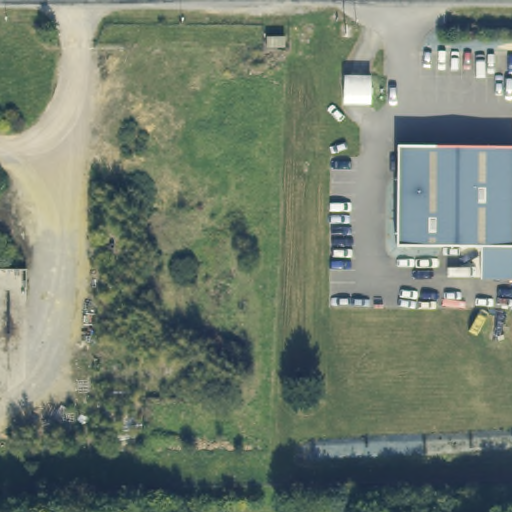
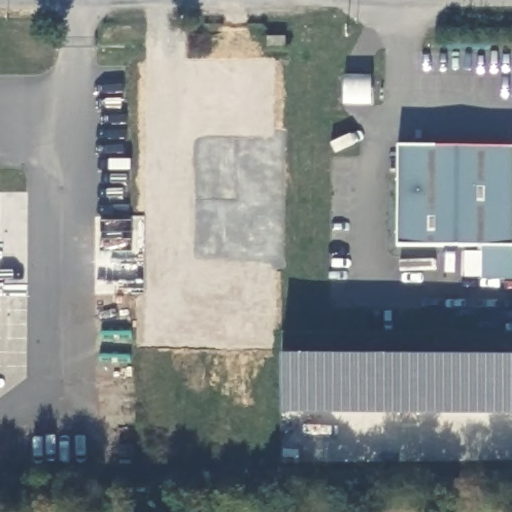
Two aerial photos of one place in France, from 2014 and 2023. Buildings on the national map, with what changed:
unchanged [(283,32),(283,42),(272,42),(272,32),(283,32)]
unchanged [(512,147),(512,280),(484,280),(485,247),(400,247),(401,147),(512,147)]
new [(280,415),(281,358),(512,358),(512,416),(280,415)]

